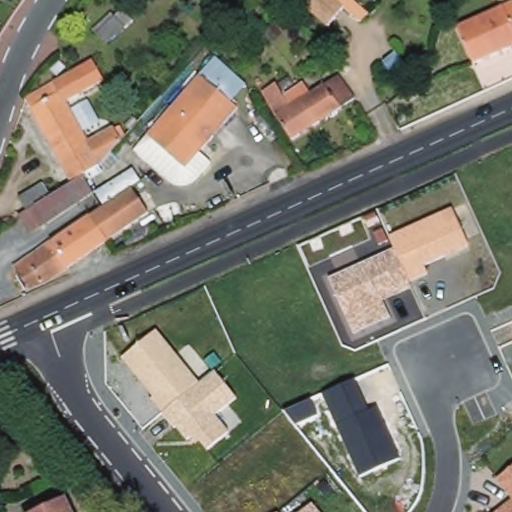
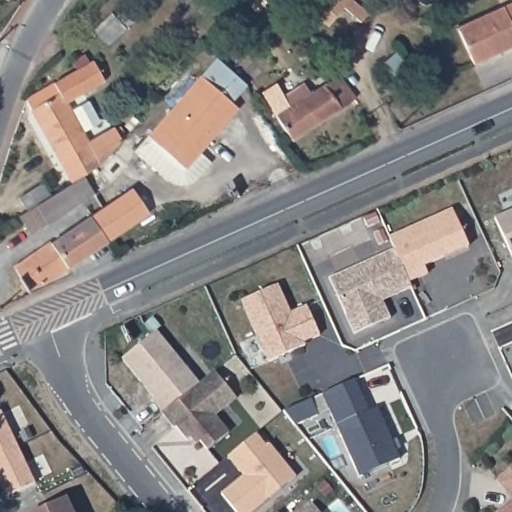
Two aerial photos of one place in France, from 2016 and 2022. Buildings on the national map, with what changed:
unchanged [(361,22),(344,9),(328,26),(304,5),(308,0),(352,0),(369,14),(361,22)]
unchanged [(512,4),(512,47),(473,64),(458,28),(512,4)]
unchanged [(125,30),(106,46),(93,30),(112,14),(125,30)]
unchanged [(394,54),(412,73),(400,84),(384,65),(394,54)]
unchanged [(91,62),(102,82),(64,103),(87,143),(113,128),(121,142),(100,165),(81,177),(73,183),(71,184),(25,101),(91,62)]
unchanged [(234,110),(196,154),(208,164),(187,186),(180,189),(174,188),(168,184),(131,151),(197,77),(234,110)]
unchanged [(275,86),(283,97),(303,85),(309,95),(339,77),(354,101),(293,141),(275,116),(263,93),(275,86)]
unchanged [(73,183),(81,177),(92,195),(29,235),(18,218),(25,213),(18,200),(39,186),(48,199),(71,184),(73,183)]
unchanged [(49,245),(88,219),(101,210),(129,191),(145,215),(104,244),(42,287),(27,291),(25,289),(22,291),(19,287),(23,285),(13,268),(49,243),(49,245)]
unchanged [(468,246),(422,264),(428,276),(410,283),(413,288),(382,303),(389,319),(354,334),(329,279),(394,251),(389,237),(452,209),(468,246)]
new [(512,210),(512,256),(495,218),(512,210)]
new [(279,285),(292,314),(307,307),(320,336),(304,343),(306,346),(269,363),(242,302),(279,285)]
unchanged [(149,399),(153,396),(122,358),(155,331),(199,384),(163,415),(149,399)]
unchanged [(214,415),(228,432),(207,450),(201,443),(189,443),(177,428),(173,429),(163,415),(214,371),(236,400),(214,415)]
unchanged [(323,394),(354,380),(367,411),(378,408),(399,459),(359,478),(323,394)]
new [(9,495),(0,477),(0,411),(3,409),(35,482),(9,495)]
new [(221,493),(243,476),(228,457),(257,434),(266,446),(269,443),(297,477),(254,512),(236,512),(221,493)]
unchanged [(512,499),(497,479),(512,468),(512,512),(495,512),(512,499)]
unchanged [(66,500),(71,512),(42,512),(66,500)]
unchanged [(312,506),(317,512),(304,512),(312,506)]

